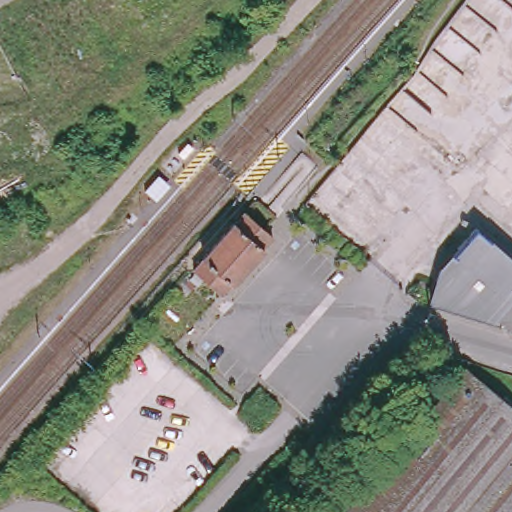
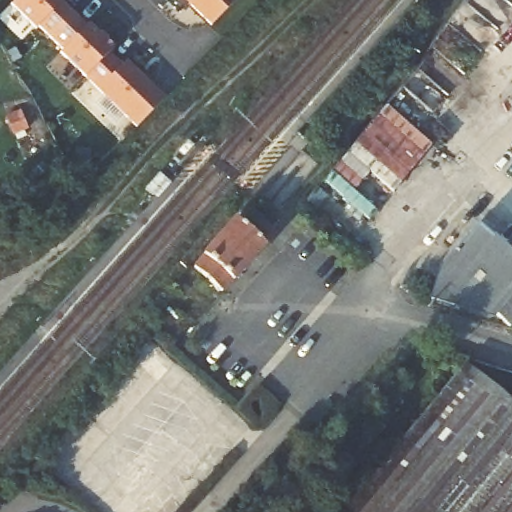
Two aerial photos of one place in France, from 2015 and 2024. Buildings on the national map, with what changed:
new [(149,130),(27,0),(67,0),(176,103),(149,130)]
new [(220,26),(194,0),(246,0),(248,2),(220,26)]
new [(378,212),(369,221),(322,182),(386,106),(433,145),(393,193),(369,173),(354,192),(378,212)]
unchanged [(255,215),(249,225),(263,235),(233,277),(224,276),(213,285),(174,252),(226,191),(228,187),(231,191),(255,215)]
unchanged [(512,329),(502,321),(462,306),(460,312),(429,303),(449,269),(459,275),(462,258),(459,256),(483,230),(512,256),(512,329)]
unchanged [(467,367),(512,405),(512,512),(347,512),(467,367)]

